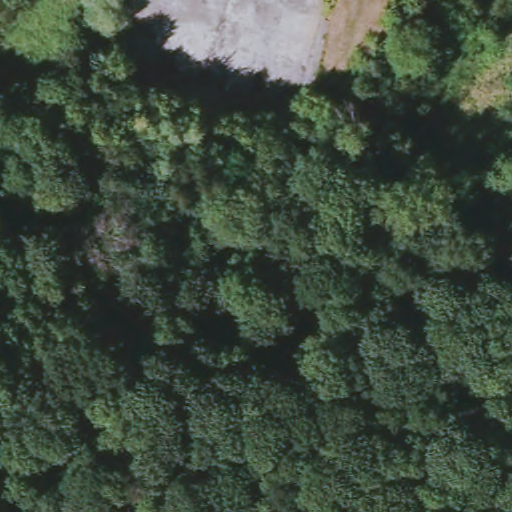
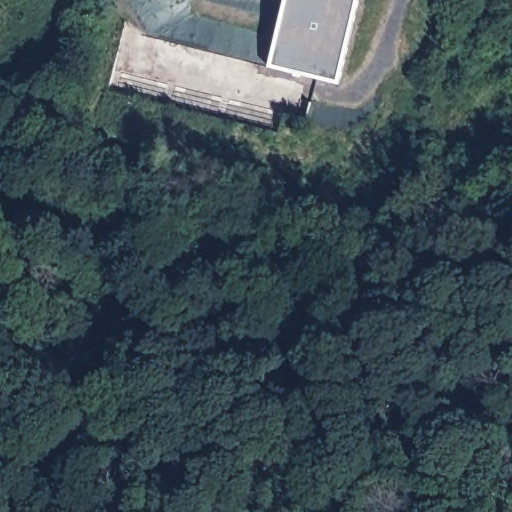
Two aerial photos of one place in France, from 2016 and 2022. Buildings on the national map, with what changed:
new [(338,84),(268,66),(284,0),(359,0),(338,84)]

